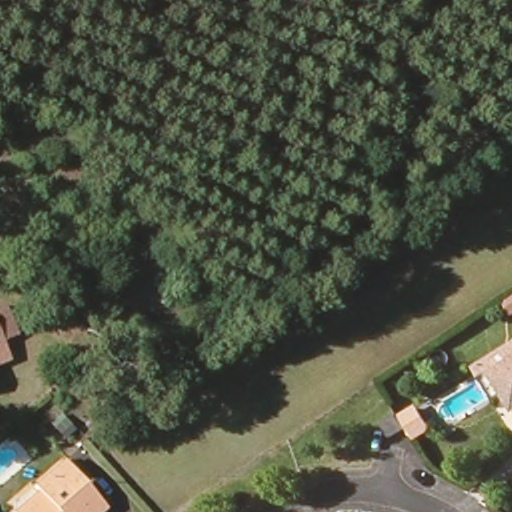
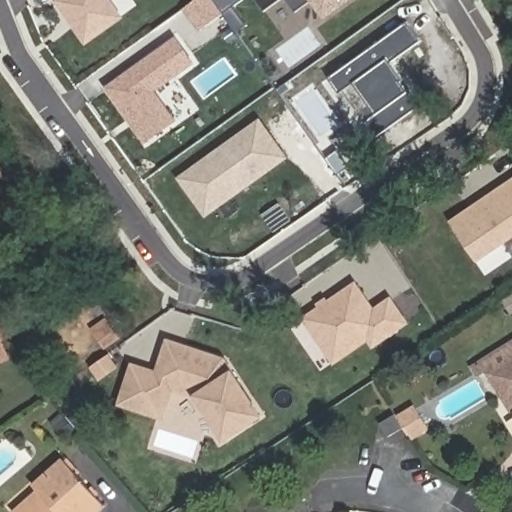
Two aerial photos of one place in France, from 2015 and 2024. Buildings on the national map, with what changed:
new [(110,0),(122,16),(89,41),(60,1),(61,0),(110,0)]
new [(215,0),(224,13),(201,29),(186,8),(197,0),(215,0)]
new [(258,0),(281,0),(266,11),(258,0)]
new [(289,0),(313,0),(297,11),(289,0)]
new [(317,0),(347,0),(327,15),(317,0)]
new [(422,104),(377,136),(366,121),(377,113),(355,82),(341,93),(330,77),(408,20),(422,40),(392,61),(405,79),(411,88),(422,104)]
new [(177,38),(195,61),(155,90),(176,120),(147,141),(109,87),(177,38)]
new [(208,213),(182,177),(261,121),(287,156),(249,183),(242,188),(208,213)]
new [(512,180),(512,235),(480,257),(454,220),(508,183),(512,180)]
new [(370,335),(335,359),(306,317),(356,283),(375,309),(391,298),(406,320),(388,333),(375,342),(370,335)]
unchanged [(0,340),(0,311),(10,336),(0,340)]
new [(122,402),(135,365),(159,373),(168,345),(170,341),(186,346),(225,359),(262,415),(226,437),(199,395),(172,386),(162,419),(146,414),(148,410),(122,402)]
unchanged [(510,405),(490,374),(483,363),(497,353),(512,344),(512,404),(510,405)]
unchanged [(411,437),(408,432),(400,418),(417,407),(425,422),(428,426),(411,437)]
unchanged [(403,431),(387,442),(378,428),(394,418),(403,431)]
unchanged [(45,497),(40,491),(35,485),(65,460),(106,507),(100,512),(28,512),(45,497)]

